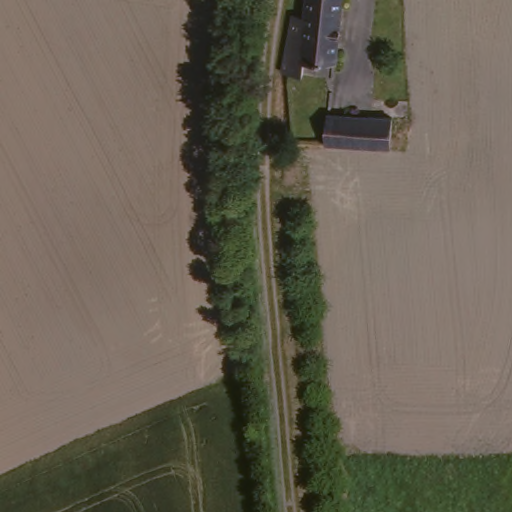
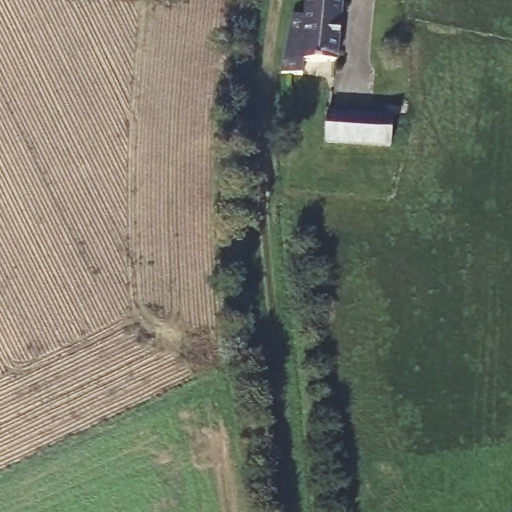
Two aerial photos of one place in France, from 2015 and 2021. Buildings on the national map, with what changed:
unchanged [(309,0),(348,0),(345,63),(315,60),(314,76),(293,75),(298,14),(307,15),(309,0)]
unchanged [(393,117),(391,153),(325,148),(327,113),(393,117)]

